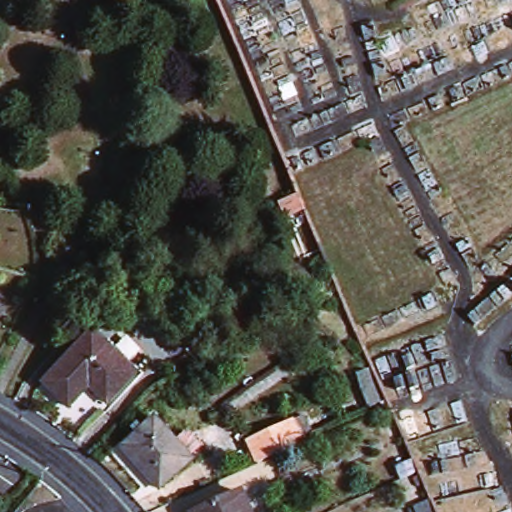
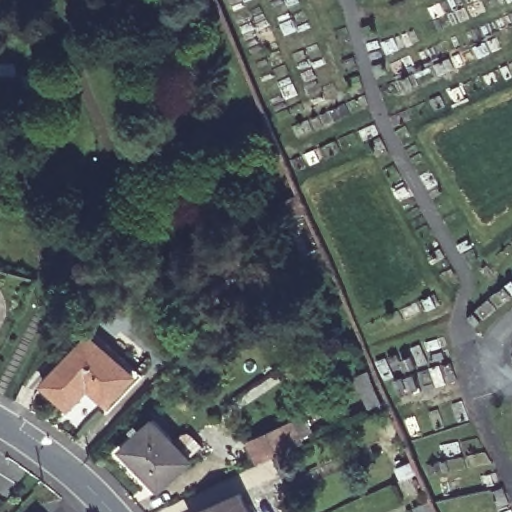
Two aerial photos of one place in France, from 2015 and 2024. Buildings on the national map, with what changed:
unchanged [(86,335),(133,373),(106,405),(88,390),(70,412),(42,390),(86,335)]
unchanged [(154,425),(190,466),(158,496),(121,455),(154,425)]
unchanged [(285,428),(288,427),(300,450),(295,452),(255,470),(245,446),(285,428)]
unchanged [(244,495),(252,512),(205,512),(244,495)]

